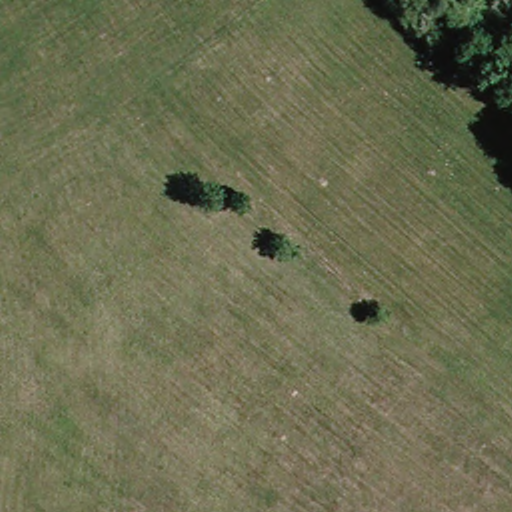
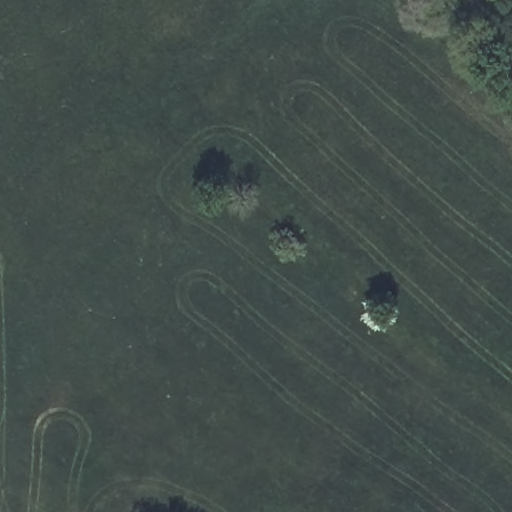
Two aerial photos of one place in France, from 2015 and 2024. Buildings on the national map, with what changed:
[]

